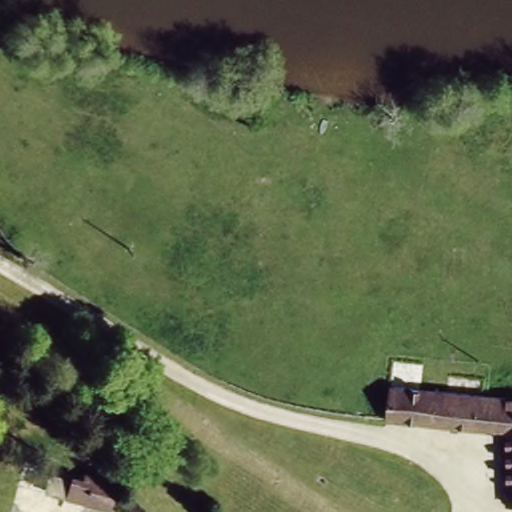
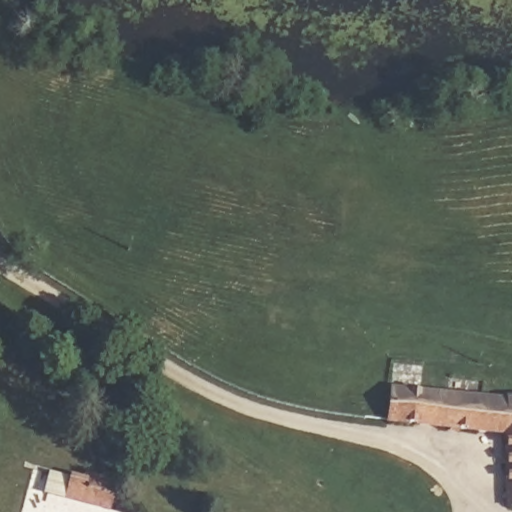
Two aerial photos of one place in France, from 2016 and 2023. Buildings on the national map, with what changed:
unchanged [(389,425),(392,384),(512,398),(512,506),(506,506),(505,435),(389,425)]
unchanged [(48,463),(118,478),(114,507),(42,492),(48,463)]

